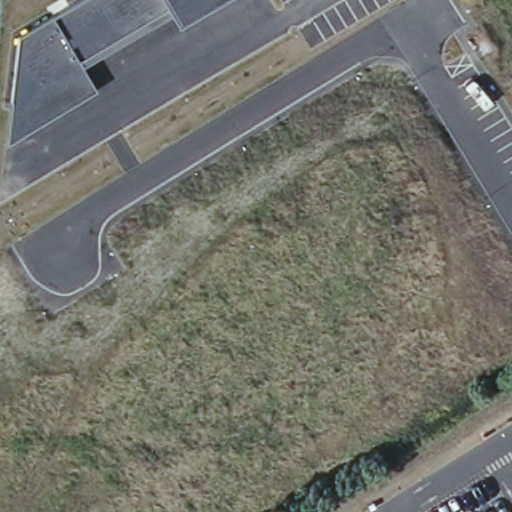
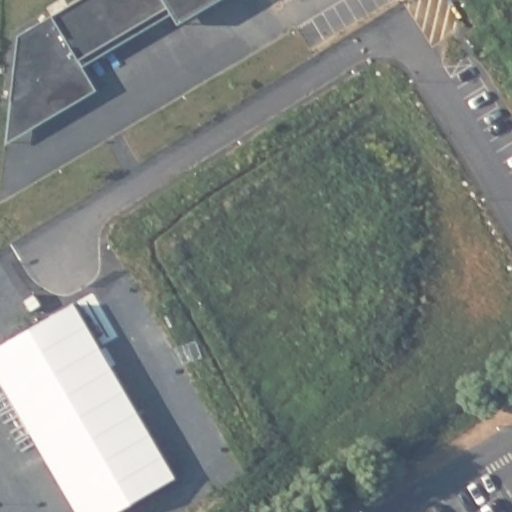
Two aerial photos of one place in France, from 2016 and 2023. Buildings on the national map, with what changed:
unchanged [(172,13),(84,67),(97,89),(8,140),(19,34),(52,15),(78,0),(220,0),(179,25),(172,13)]
new [(80,306),(183,487),(141,512),(76,512),(0,376),(0,358),(80,306)]

